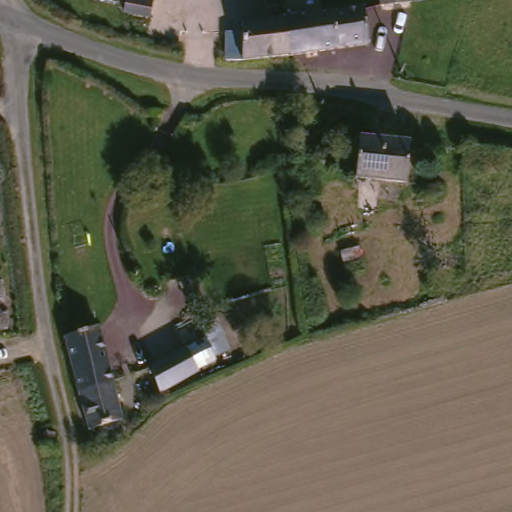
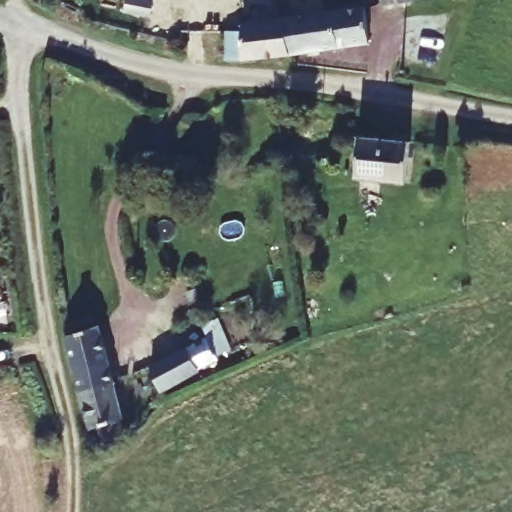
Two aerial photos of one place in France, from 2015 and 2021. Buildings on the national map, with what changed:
unchanged [(385,4),(385,0),(411,0),(385,4)]
unchanged [(363,6),(370,44),(290,55),(283,19),(363,6)]
unchanged [(290,55),(244,60),(227,60),(224,34),(240,31),(239,25),(283,19),(290,55)]
unchanged [(365,133),(414,137),(410,178),(361,174),(365,133)]
unchanged [(100,321),(127,420),(89,431),(65,335),(100,321)]
unchanged [(213,336),(224,360),(162,388),(153,366),(213,336)]

